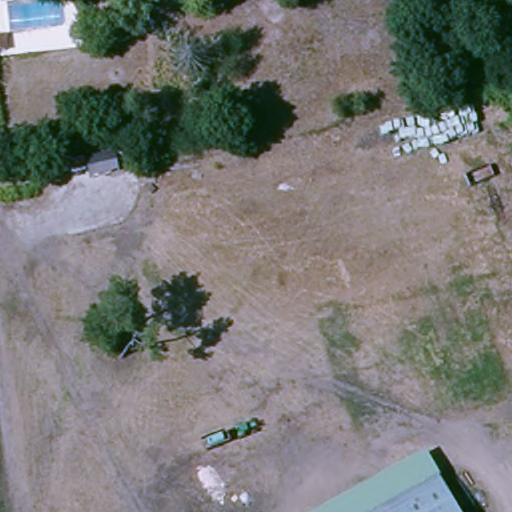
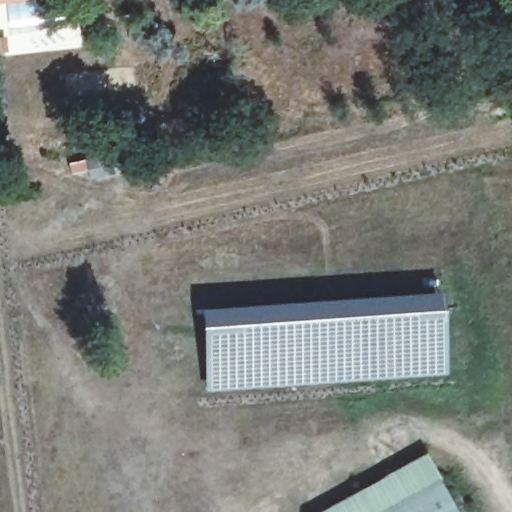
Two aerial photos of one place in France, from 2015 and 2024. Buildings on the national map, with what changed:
demolished [(0,110),(0,36),(8,37),(8,50),(20,50),(27,155),(5,158),(0,110)]
new [(206,390),(200,323),(200,306),(443,288),(444,305),(448,373),(206,390)]
unchanged [(461,512),(375,512),(441,475),(461,512)]

